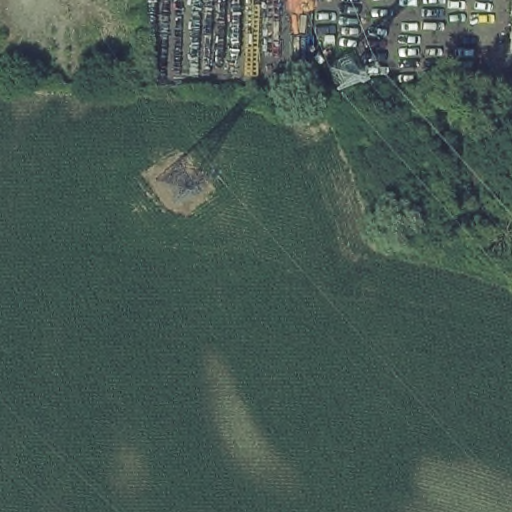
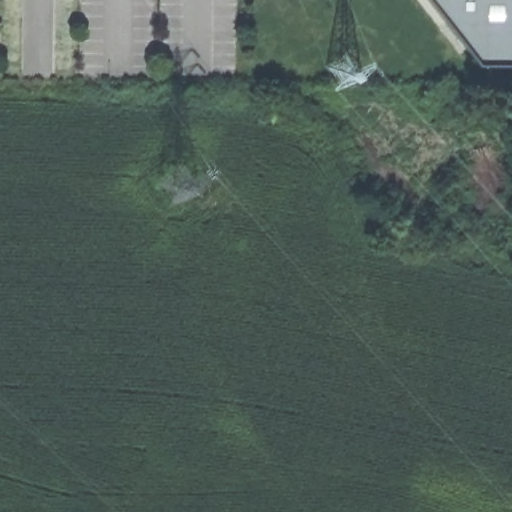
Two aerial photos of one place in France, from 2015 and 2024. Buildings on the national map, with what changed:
new [(512,66),(478,66),(427,0),(512,0),(512,66)]
demolished [(510,13),(512,13),(512,64),(510,64),(510,13)]

